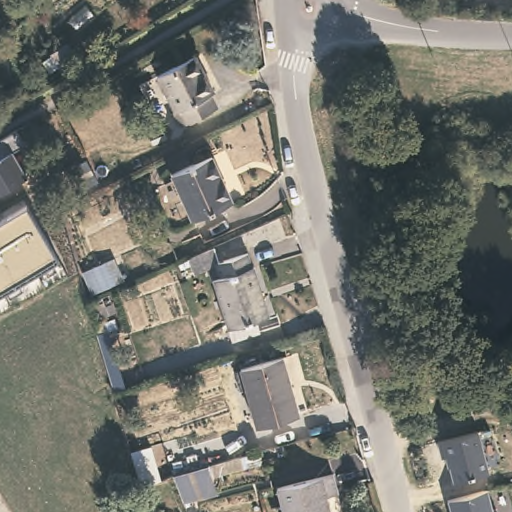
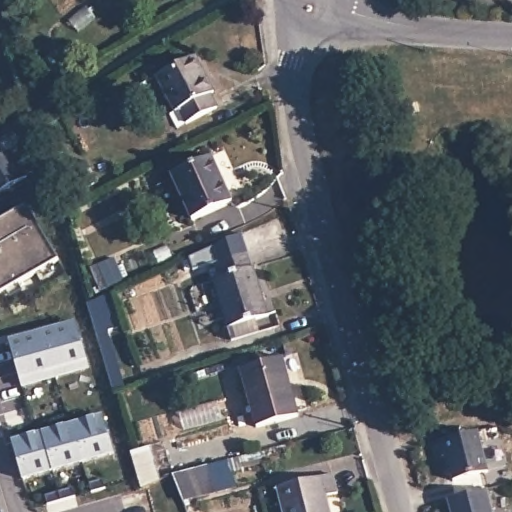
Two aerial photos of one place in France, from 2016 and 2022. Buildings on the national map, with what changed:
unchanged [(174,111),(179,108),(159,71),(197,50),(218,89),(214,91),(221,105),(189,120),(181,124),(174,111)]
unchanged [(25,147),(15,153),(27,179),(0,194),(0,141),(17,131),(25,147)]
unchanged [(66,163),(82,155),(93,177),(77,185),(66,163)]
unchanged [(232,199),(194,218),(172,174),(212,155),(232,199)]
unchanged [(58,260),(0,296),(0,224),(27,208),(58,260)]
unchanged [(281,326),(264,332),(234,343),(207,268),(194,272),(190,260),(215,250),(220,263),(247,253),(251,266),(255,265),(272,315),(277,314),(281,326)]
unchanged [(83,270),(117,256),(126,280),(91,294),(83,270)]
new [(98,335),(88,302),(111,293),(122,326),(108,331),(126,387),(115,390),(98,335)]
new [(77,319),(88,359),(91,368),(23,389),(20,381),(13,340),(77,319)]
unchanged [(298,412),(256,423),(239,368),(282,356),(298,412)]
new [(10,440),(102,413),(114,455),(22,481),(10,440)]
unchanged [(479,434),(488,474),(452,480),(450,466),(448,466),(446,456),(441,457),(438,443),(479,434)]
unchanged [(216,478),(212,462),(260,449),(265,464),(216,478)]
unchanged [(174,472),(212,462),(212,464),(216,478),(219,489),(210,491),(184,497),(174,472)]
unchanged [(335,486),(324,488),(330,512),(282,512),(274,481),(330,466),(335,486)]
unchanged [(489,492),(494,512),(451,512),(449,501),(489,492)]
new [(0,506),(2,512),(0,512),(0,506)]

